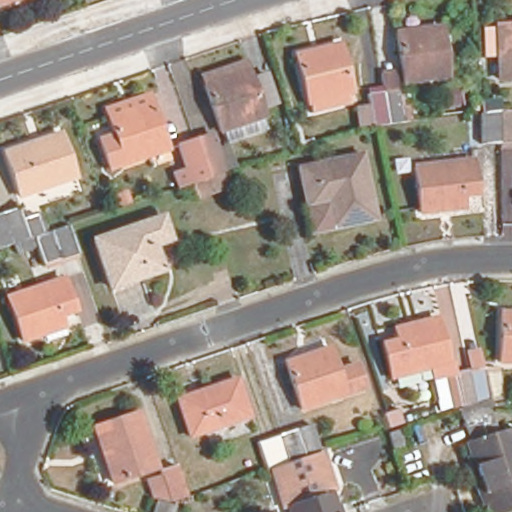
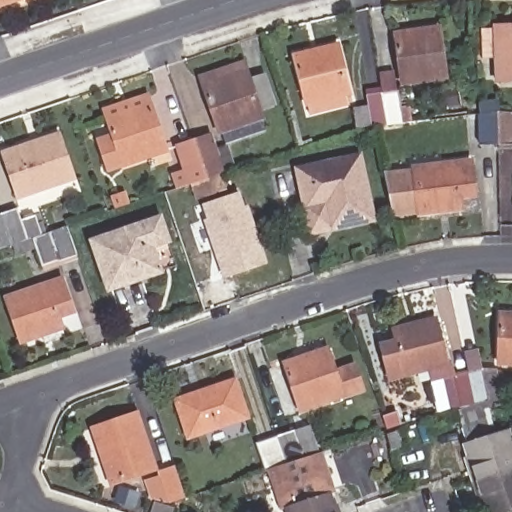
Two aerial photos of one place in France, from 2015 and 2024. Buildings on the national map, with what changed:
unchanged [(26,0),(0,9),(0,0),(26,0)]
unchanged [(402,86),(395,33),(416,30),(439,27),(440,34),(446,80),(402,86)]
unchanged [(495,57),(483,58),(482,30),(494,29),(512,28),(512,81),(496,82),(495,57)]
unchanged [(345,90),(347,100),(311,109),(295,51),(312,46),(338,40),(340,45),(352,89),(345,90)]
unchanged [(226,139),(222,127),(220,128),(203,82),(226,74),(246,67),(247,72),(262,113),(260,114),(264,126),(226,139)]
unchanged [(382,95),(397,92),(400,109),(408,108),(410,123),(408,124),(387,126),(372,128),(365,97),(382,95)]
unchanged [(122,157),(107,161),(97,130),(111,125),(106,109),(127,102),(149,95),(151,100),(165,142),(122,157)]
unchanged [(479,145),(478,115),(497,112),(512,113),(512,145),(498,145),(479,145)]
unchanged [(72,180),(17,199),(6,166),(21,160),(19,154),(17,149),(41,140),(57,135),(72,180)]
unchanged [(197,200),(192,185),(190,185),(177,190),(172,176),(185,171),(177,149),(193,142),(209,137),(222,175),(221,175),(226,190),(197,200)]
unchanged [(358,156),(371,220),(310,235),(296,170),(358,156)]
unchanged [(470,162),(474,196),(460,198),(461,210),(419,215),(413,169),(470,162)]
unchanged [(111,195),(125,191),(130,205),(116,210),(111,195)]
new [(204,220),(207,220),(203,204),(241,191),(246,206),(250,205),(268,263),(223,280),(204,220)]
unchanged [(76,250),(42,261),(37,245),(14,251),(11,241),(0,244),(0,210),(16,205),(20,216),(36,210),(43,230),(67,222),(76,250)]
unchanged [(159,217),(167,242),(151,248),(160,273),(108,290),(91,241),(159,217)]
unchanged [(60,280),(71,313),(56,318),(60,328),(21,341),(6,299),(60,280)]
unchanged [(499,308),(512,309),(512,359),(499,358),(499,308)]
unchanged [(498,395),(489,396),(491,402),(487,407),(495,430),(505,426),(512,446),(512,507),(496,512),(488,512),(485,502),(481,504),(464,454),(469,452),(465,440),(468,439),(456,403),(451,403),(438,408),(429,365),(391,375),(381,341),(396,337),(395,330),(394,325),(415,320),(433,315),(444,358),(453,356),(455,371),(468,369),(464,347),(478,345),(482,366),(491,366),(494,366),(498,395)]
unchanged [(353,360),(363,386),(342,393),(342,391),(299,406),(282,360),(305,351),(327,345),(328,350),(334,366),(353,360)]
unchanged [(233,380),(246,418),(188,438),(175,400),(233,380)]
unchanged [(383,420),(381,411),(396,406),(401,420),(385,425),(383,420)]
unchanged [(90,425),(134,409),(153,464),(109,479),(104,462),(97,442),(90,425)]
unchanged [(333,466),(315,471),(311,455),(285,464),(264,471),(254,445),(276,437),(309,426),(319,453),(327,450),(333,466)]
unchanged [(387,430),(397,427),(403,442),(392,445),(387,430)]
unchanged [(162,500),(170,505),(167,512),(149,512),(152,501),(144,476),(158,471),(157,468),(172,462),(183,493),(169,498),(162,500)]
unchanged [(285,508),(291,507),(285,490),(317,479),(323,496),(328,495),(332,508),(337,507),(339,512),(286,512),(285,508)]

